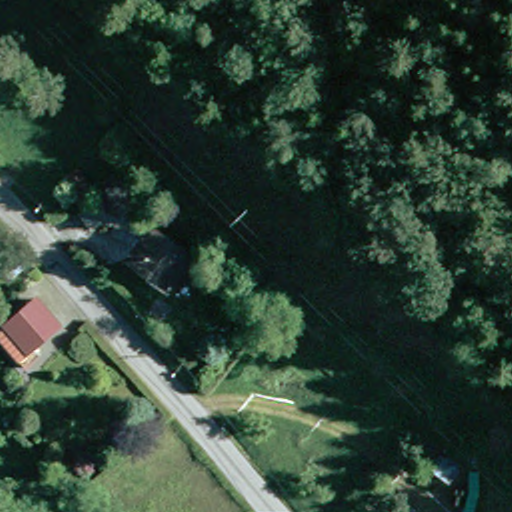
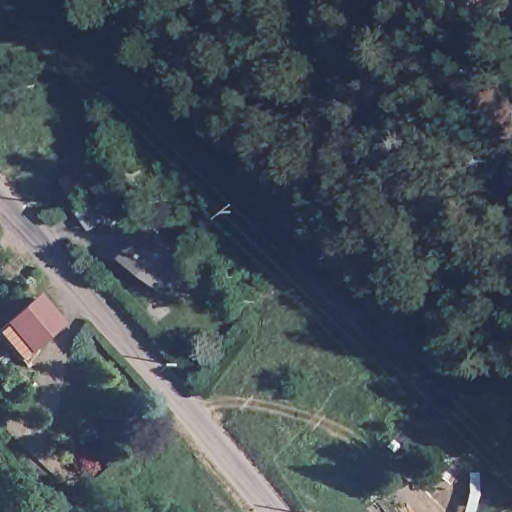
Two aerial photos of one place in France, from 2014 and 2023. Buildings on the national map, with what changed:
unchanged [(81,214),(77,207),(61,182),(75,169),(96,190),(92,194),(98,202),(104,198),(112,209),(117,214),(89,234),(85,229),(77,215),(81,214)]
unchanged [(186,260),(165,288),(129,261),(151,234),(186,260)]
unchanged [(1,270),(20,256),(30,269),(12,282),(1,270)]
unchanged [(19,364),(0,343),(0,330),(32,301),(53,325),(27,349),(31,353),(36,359),(24,370),(19,364)]

